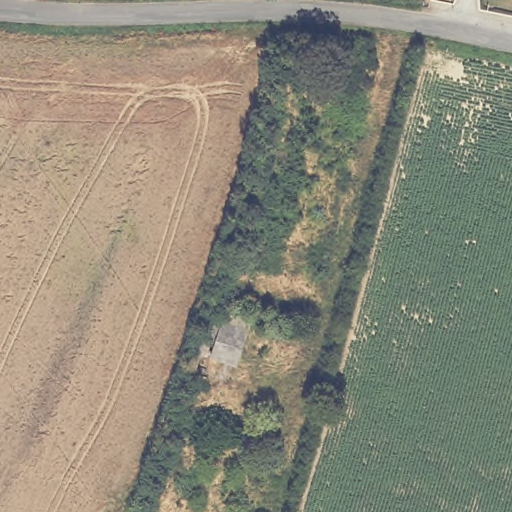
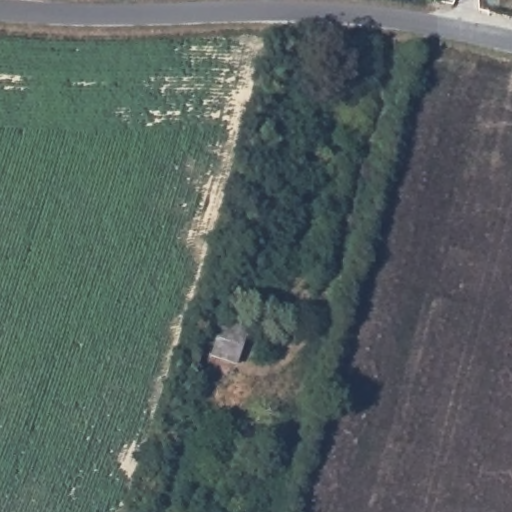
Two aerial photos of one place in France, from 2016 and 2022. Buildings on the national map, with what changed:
unchanged [(209,350),(213,337),(203,334),(210,310),(249,322),(241,346),(237,358),(209,350)]

